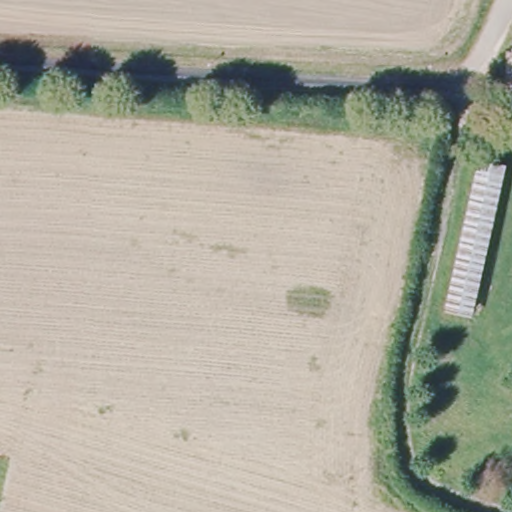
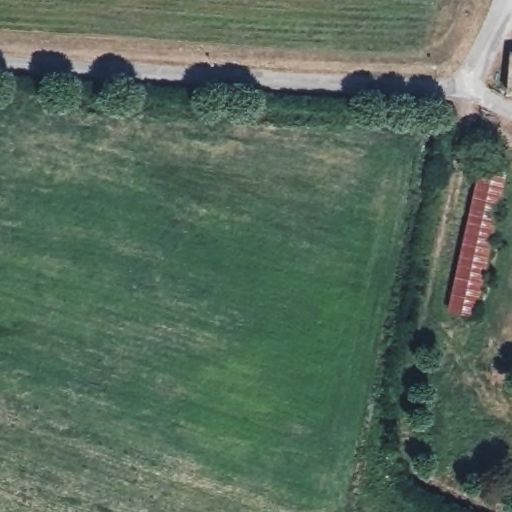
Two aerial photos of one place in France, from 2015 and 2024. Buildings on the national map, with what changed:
unchanged [(512,50),(512,89),(505,89),(508,50),(512,50)]
unchanged [(451,304),(483,159),(508,164),(476,310),(451,304)]

